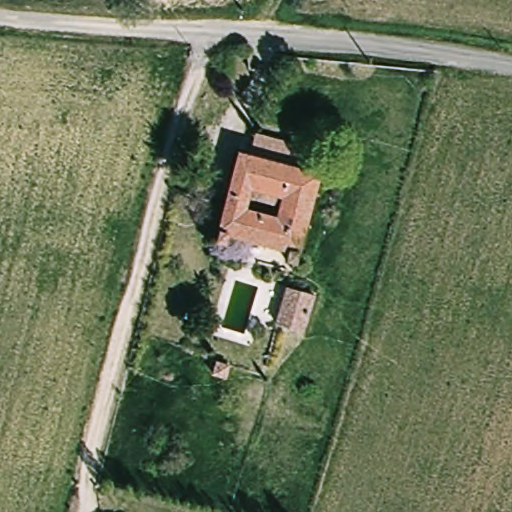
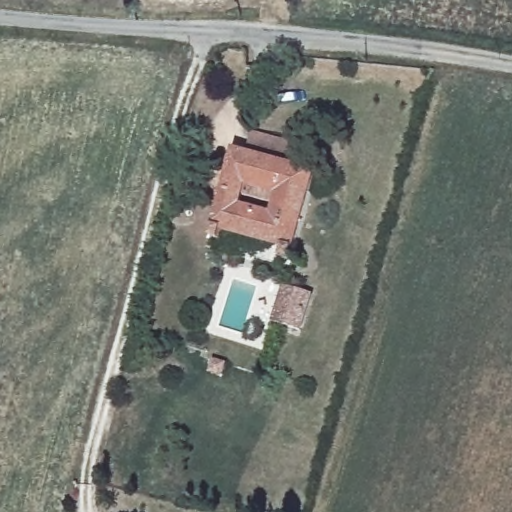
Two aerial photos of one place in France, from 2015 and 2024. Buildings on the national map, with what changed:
unchanged [(322,173),(297,263),(290,260),(290,249),(231,236),(230,246),(217,243),(243,151),(322,173)]
unchanged [(290,308),(310,314),(296,361),(276,355),(290,308)]

